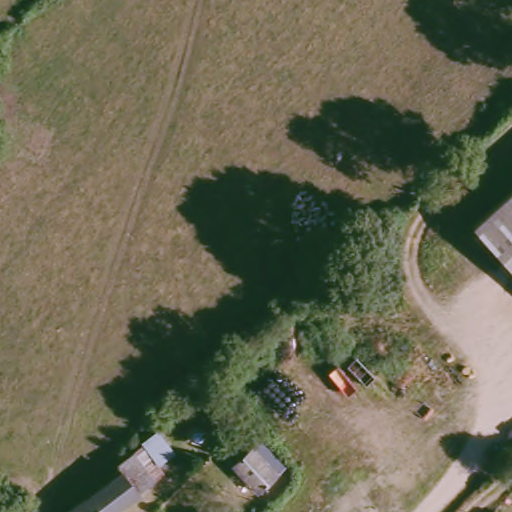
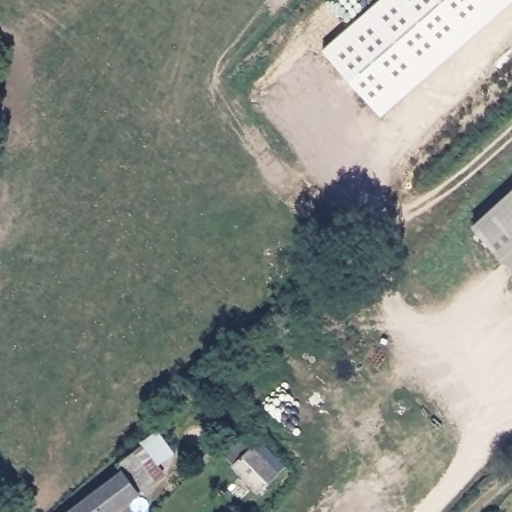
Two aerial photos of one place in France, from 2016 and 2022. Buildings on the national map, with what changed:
new [(375,0),(486,0),(372,95),(327,40),(375,0)]
unchanged [(512,194),(512,261),(480,223),(512,194)]
unchanged [(145,443),(160,430),(179,455),(176,457),(163,465),(165,467),(142,485),(120,460),(143,441),(145,443)]
unchanged [(273,475),(256,492),(230,470),(232,467),(223,456),(240,440),(273,475)]
unchanged [(111,512),(64,512),(71,506),(77,508),(114,475),(107,469),(120,460),(142,485),(111,512)]

